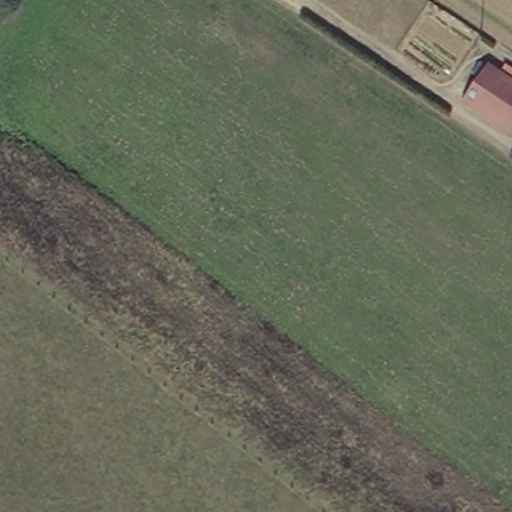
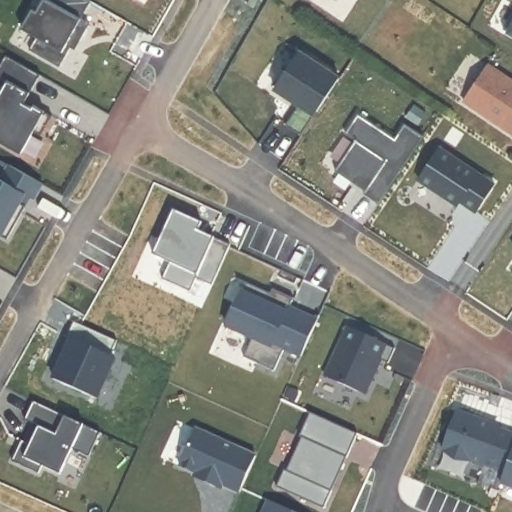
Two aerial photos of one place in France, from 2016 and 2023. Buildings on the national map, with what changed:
new [(91,1),(83,18),(89,22),(74,49),(70,46),(60,65),(30,49),(37,36),(22,27),(33,10),(37,12),(44,0),(88,0),(91,1)]
new [(251,0),(259,0),(253,9),(247,6),(251,0)]
new [(512,8),(512,34),(501,27),(512,8)]
new [(340,75),(314,116),(304,132),(289,123),(301,106),(274,89),(299,49),(340,75)]
new [(41,74),(30,93),(24,103),(32,107),(34,104),(44,111),(51,115),(41,135),(34,130),(21,152),(0,140),(0,90),(6,80),(0,76),(0,67),(7,55),(41,74)]
unchanged [(484,60),(512,78),(512,138),(455,98),(484,60)]
new [(355,181),(335,168),(355,137),(345,130),(358,111),(395,135),(404,121),(424,134),(378,201),(363,191),(366,186),(365,188),(355,181)]
new [(496,183),(477,213),(460,202),(457,206),(419,181),(440,144),(496,183)]
new [(8,161),(42,183),(34,198),(26,193),(2,235),(0,235),(0,174),(8,161)]
new [(270,294),(272,289),(294,298),(291,306),(316,317),(300,358),(282,350),(274,369),(244,357),(251,340),(225,327),(241,290),(243,291),(247,283),(270,294)]
new [(56,362),(60,352),(73,322),(95,332),(117,341),(114,348),(110,356),(114,358),(97,398),(54,379),(60,365),(56,362)]
new [(395,349),(389,363),(380,360),(367,394),(324,376),(345,327),(395,349)]
new [(25,442),(33,424),(25,421),(34,403),(34,402),(101,433),(101,434),(89,457),(73,450),(61,476),(43,468),(40,475),(12,462),(22,441),(25,442)]
new [(512,488),(500,483),(504,473),(495,470),(494,473),(440,453),(456,409),(512,431),(512,488)]
new [(322,512),(313,508),(280,482),(285,472),(287,474),(303,440),(300,439),(312,414),(359,435),(348,460),(332,494),(323,512),(322,512)]
new [(203,476),(177,464),(193,426),(240,449),(251,458),(236,493),(220,485),(218,489),(201,481),(191,476),(193,472),(203,476)]
new [(313,507),(276,491),(280,482),(313,507)]
new [(262,512),(268,500),(293,512),(262,512)]

